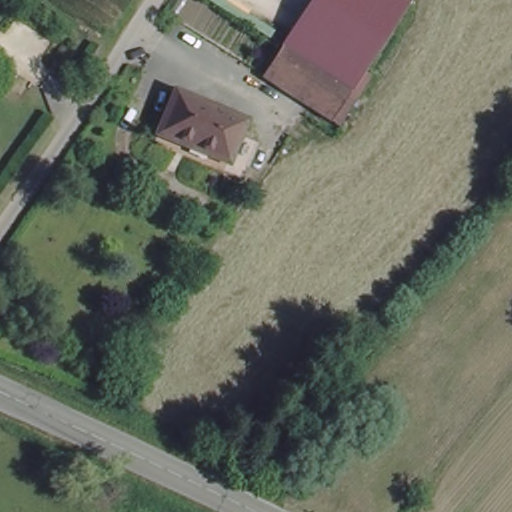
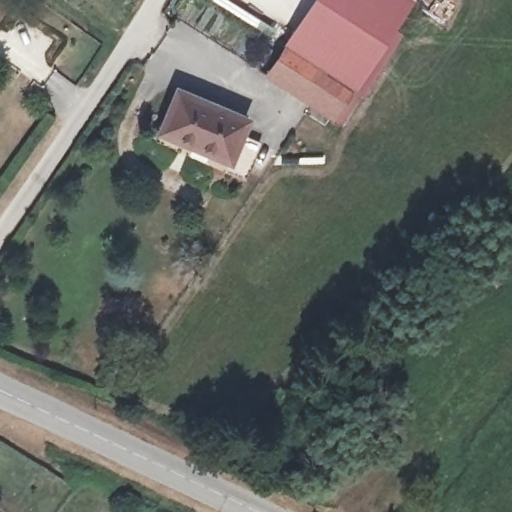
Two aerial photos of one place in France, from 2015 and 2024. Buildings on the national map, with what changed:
unchanged [(374,58),(378,66),(344,123),(266,73),(314,0),(412,0),(374,58)]
unchanged [(244,116),(227,168),(157,142),(175,92),(244,116)]

